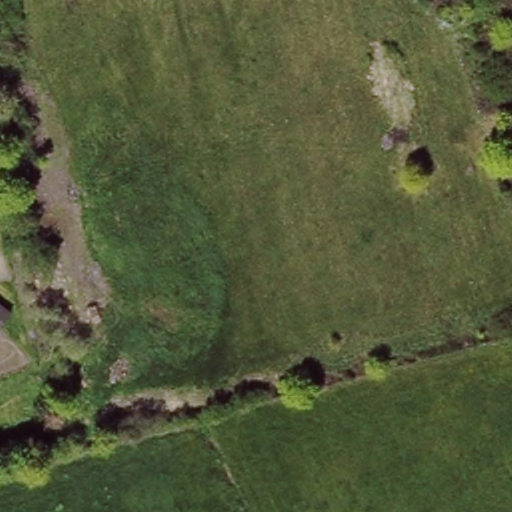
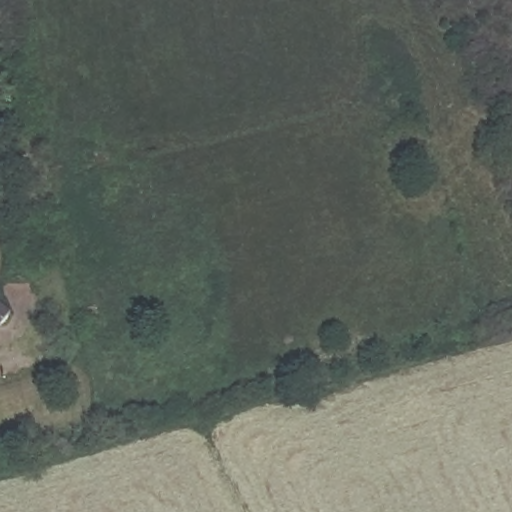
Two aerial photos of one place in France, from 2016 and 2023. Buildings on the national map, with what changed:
[]

